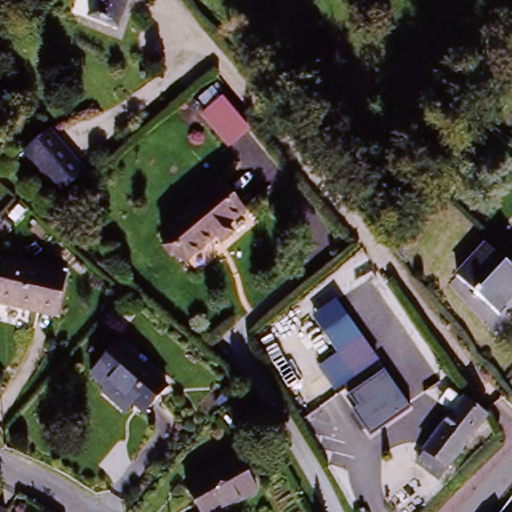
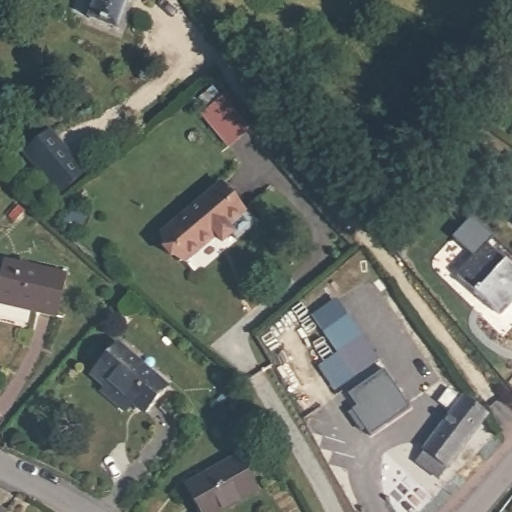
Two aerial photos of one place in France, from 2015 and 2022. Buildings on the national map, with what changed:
unchanged [(119,32),(90,22),(98,0),(130,0),(119,32)]
unchanged [(205,115),(225,101),(252,131),(227,145),(205,115)]
unchanged [(51,190),(22,154),(47,134),(76,170),(51,190)]
unchanged [(245,210),(228,226),(234,232),(222,242),(216,236),(188,261),(163,235),(220,183),(245,210)]
unchanged [(455,277),(483,250),(512,279),(512,304),(497,319),(455,277)]
unchanged [(11,269),(67,283),(57,322),(1,307),(11,269)]
unchanged [(335,391),(319,368),(337,358),(314,315),(339,297),(377,364),(335,391)]
unchanged [(146,414),(132,403),(126,411),(102,392),(107,386),(94,373),(120,341),(171,384),(146,414)]
unchanged [(353,412),(359,408),(350,395),(384,369),(410,406),(370,436),(353,412)]
unchanged [(425,461),(432,451),(429,448),(433,441),(470,395),(492,416),(455,461),(444,476),(425,461)]
unchanged [(235,456),(256,490),(220,512),(202,512),(186,486),(235,456)]

